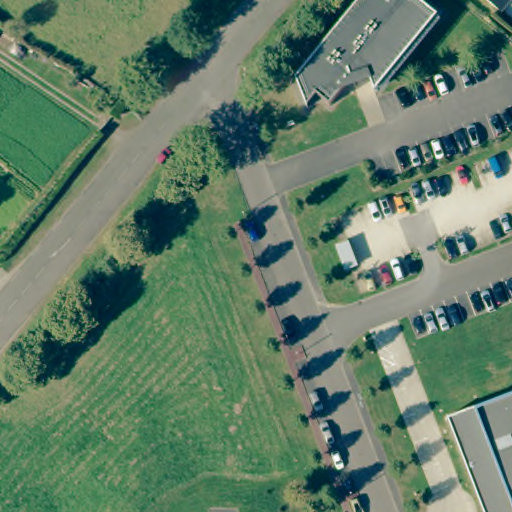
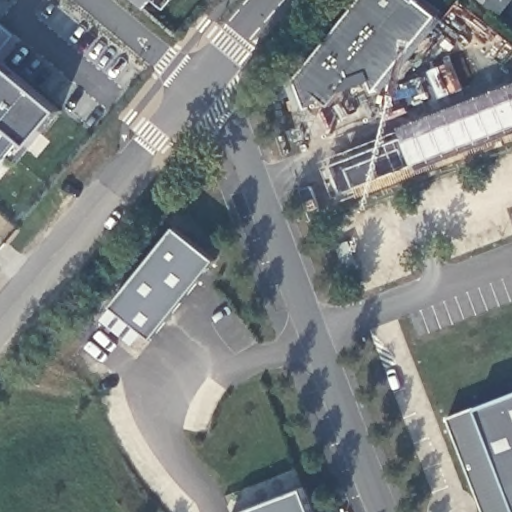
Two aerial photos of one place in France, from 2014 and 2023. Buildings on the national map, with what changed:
new [(134,0),(148,0),(142,6),(134,0)]
unchanged [(360,0),(417,0),(436,15),(374,92),(367,74),(352,80),(329,107),(316,96),(306,108),(295,79),(360,0)]
unchanged [(499,11),(486,0),(508,0),(499,11)]
new [(60,110),(29,147),(23,141),(0,167),(0,62),(60,110)]
new [(176,229),(216,263),(152,340),(112,307),(176,229)]
unchanged [(474,408),(512,394),(512,512),(483,512),(449,418),(474,408)]
unchanged [(311,512),(242,512),(301,487),(311,512)]

